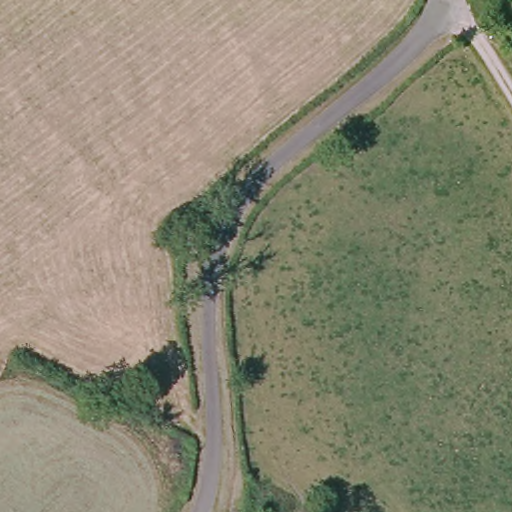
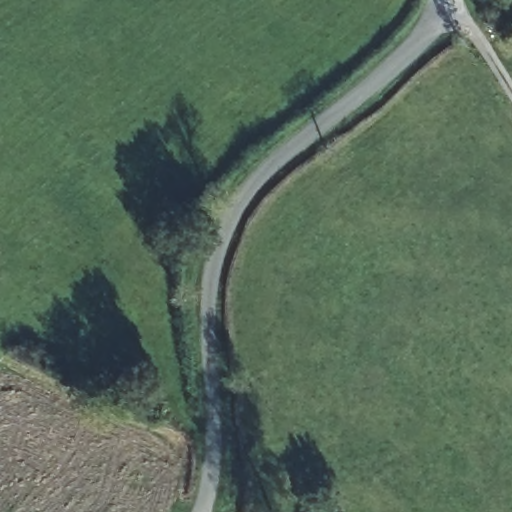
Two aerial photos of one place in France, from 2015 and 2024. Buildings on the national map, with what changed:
[]

